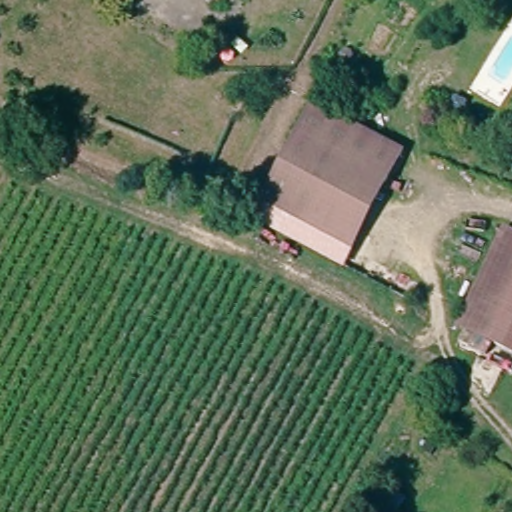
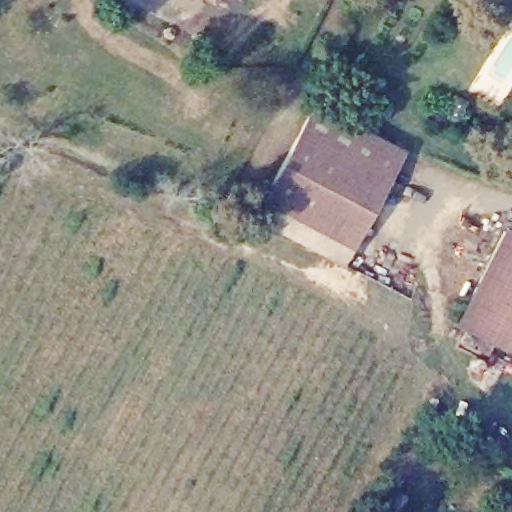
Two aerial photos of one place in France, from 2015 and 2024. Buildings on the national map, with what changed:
unchanged [(310,103),(412,154),(365,247),(263,196),(310,103)]
unchanged [(487,324),(482,332),(466,323),(512,233),(512,258),(511,260),(512,261),(512,305),(497,330),(487,324)]
unchanged [(512,258),(512,261),(511,260),(512,258)]
unchanged [(466,323),(482,332),(487,324),(497,330),(512,305),(512,362),(460,334),(466,323)]

